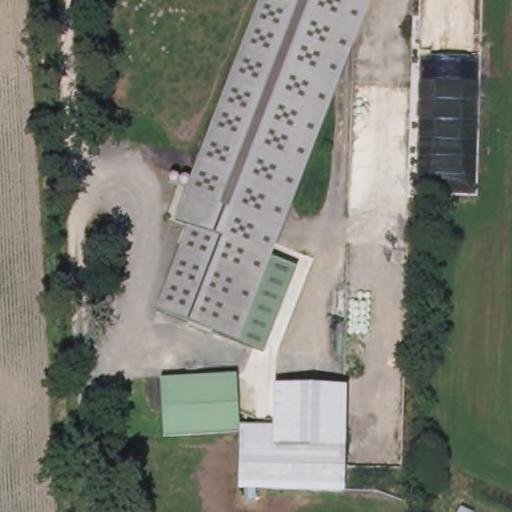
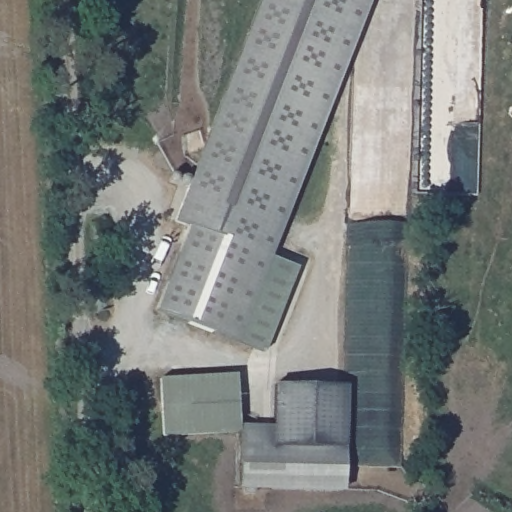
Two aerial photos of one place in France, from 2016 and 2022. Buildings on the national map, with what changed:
unchanged [(236,345),(153,314),(186,227),(174,222),(258,0),(368,0),(236,345)]
unchanged [(297,268),(265,352),(237,341),(270,257),(297,268)]
unchanged [(237,432),(162,436),(160,376),(235,373),(237,432)]
unchanged [(272,427),(273,385),(345,386),(344,447),(343,491),(238,488),(237,432),(237,425),(272,427)]

